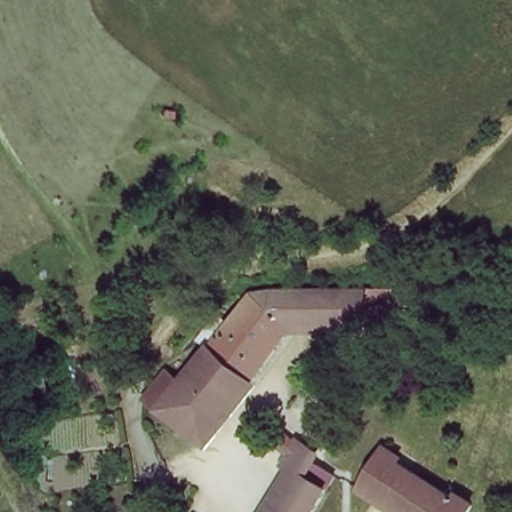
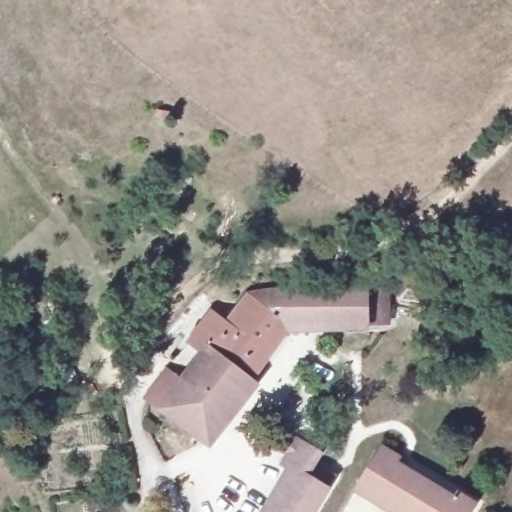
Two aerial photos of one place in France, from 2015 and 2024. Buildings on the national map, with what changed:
unchanged [(145,394),(164,371),(179,382),(209,345),(212,346),(252,297),(365,290),(365,301),(380,300),(381,319),(289,324),(202,433),(158,407),(145,398),(145,394)]
unchanged [(274,458),(256,447),(262,436),(302,459),(297,468),(319,480),(301,512),(256,512),(276,474),(268,468),(274,458)]
unchanged [(389,466),(453,497),(457,490),(473,499),(466,512),(400,512),(372,497),(368,503),(352,495),(376,451),(393,458),(389,466)]

